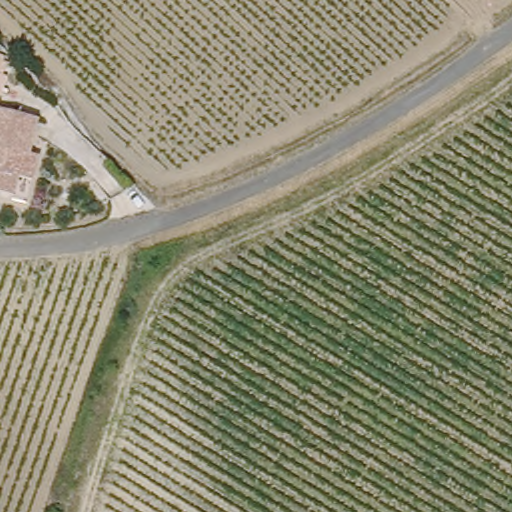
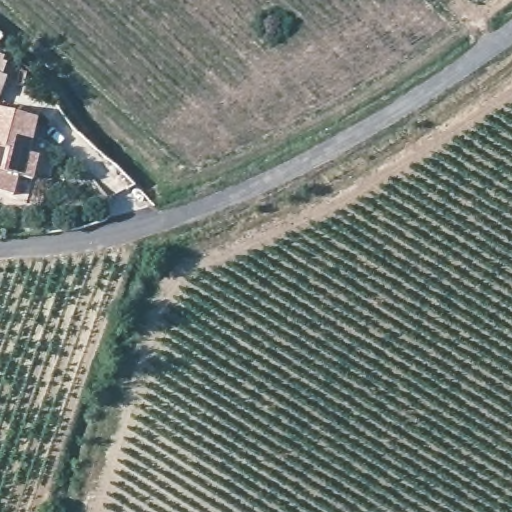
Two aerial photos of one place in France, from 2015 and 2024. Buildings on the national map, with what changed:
unchanged [(0,107),(37,116),(30,151),(39,153),(34,178),(19,174),(15,193),(0,190),(0,107)]

